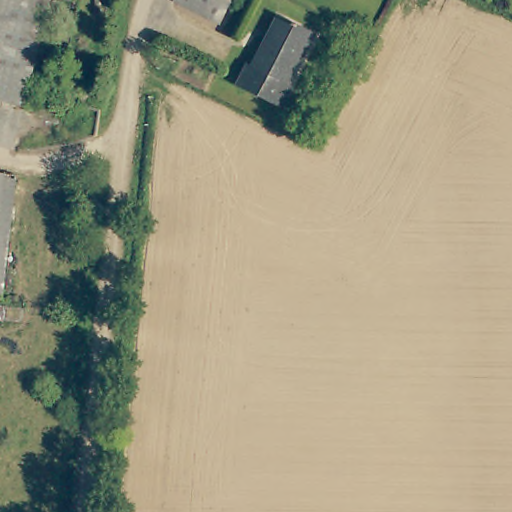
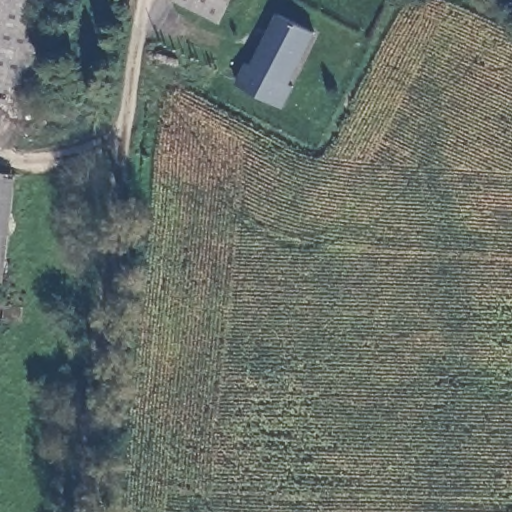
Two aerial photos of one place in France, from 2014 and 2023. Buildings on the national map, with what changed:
unchanged [(0,102),(0,0),(41,0),(17,106),(0,102)]
unchanged [(218,0),(239,0),(232,17),(184,10),(166,0),(210,0),(216,3),(218,0)]
unchanged [(210,0),(218,0),(216,3),(210,0)]
unchanged [(306,35),(280,86),(285,89),(272,112),(227,87),(237,67),(242,70),(269,18),(306,35)]
unchanged [(0,251),(0,175),(8,176),(0,251)]

